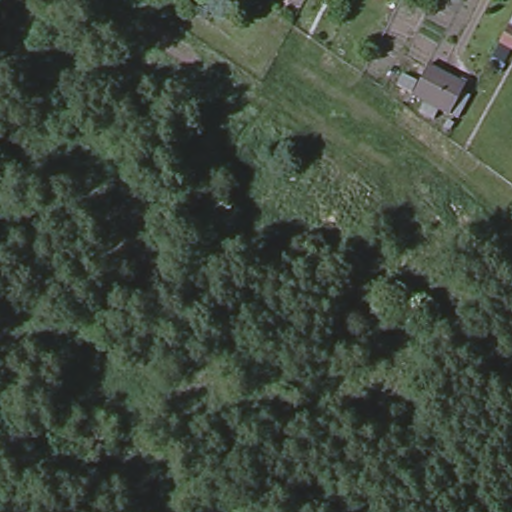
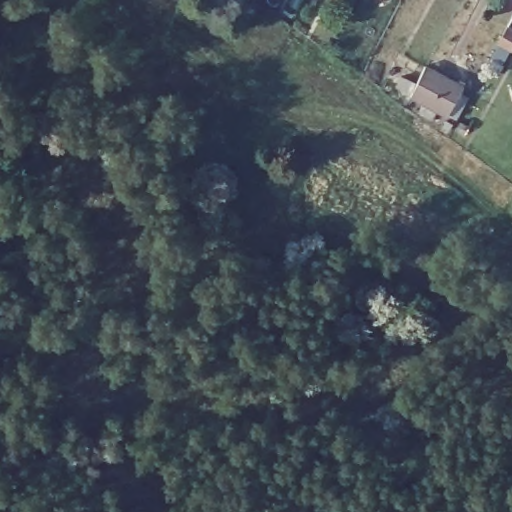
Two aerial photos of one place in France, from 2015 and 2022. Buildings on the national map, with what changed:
unchanged [(512,46),(499,39),(507,25),(512,28),(512,45),(512,46)]
unchanged [(449,118),(416,94),(430,64),(467,88),(449,118)]

